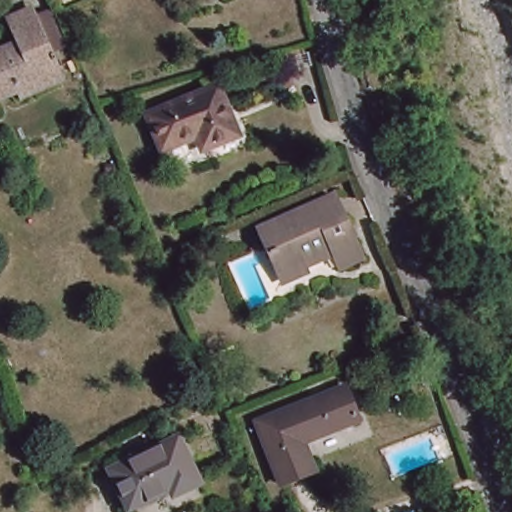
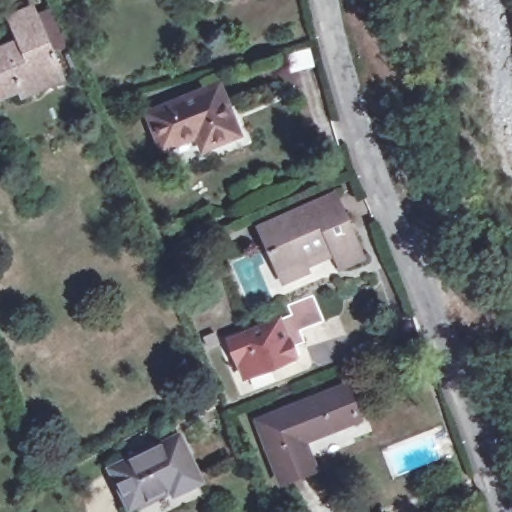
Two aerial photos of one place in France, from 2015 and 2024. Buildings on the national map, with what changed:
unchanged [(32,97),(0,111),(0,58),(12,53),(4,29),(27,19),(30,26),(49,19),(65,58),(46,65),(50,75),(57,91),(35,101),(32,97)]
unchanged [(157,144),(144,110),(214,81),(233,129),(197,144),(192,130),(157,144)]
unchanged [(284,277),(280,266),(262,223),(335,192),(362,254),(340,263),(332,244),(305,256),(309,267),(284,277)]
new [(292,317),(288,308),(314,297),(325,323),(300,333),(305,344),(291,349),(295,359),(245,378),(230,342),(292,317)]
unchanged [(265,479),(242,418),(330,382),(343,415),(290,437),(300,466),(265,479)]
unchanged [(120,506),(102,471),(170,439),(189,481),(162,494),(160,487),(120,506)]

